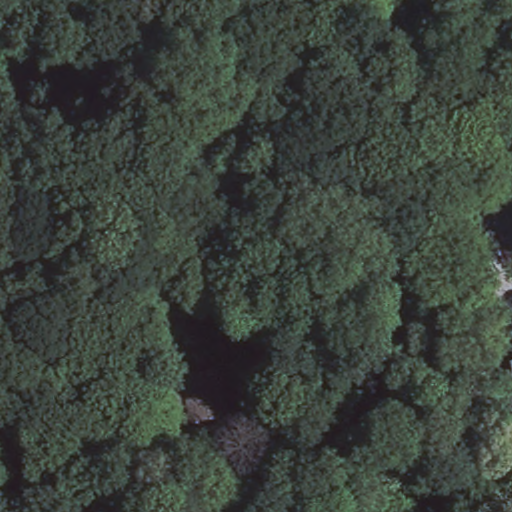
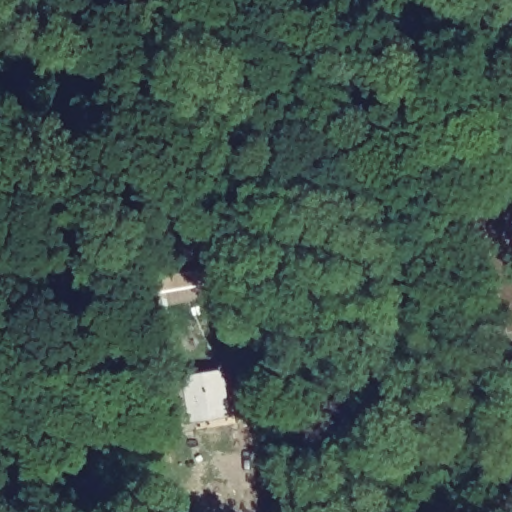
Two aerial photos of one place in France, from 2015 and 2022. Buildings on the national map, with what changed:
unchanged [(220,289),(178,296),(178,288),(165,291),(162,275),(216,266),(220,289)]
unchanged [(512,352),(512,365),(510,352),(512,352)]
unchanged [(180,374),(197,371),(227,367),(234,405),(204,411),(202,408),(187,411),(180,374)]

